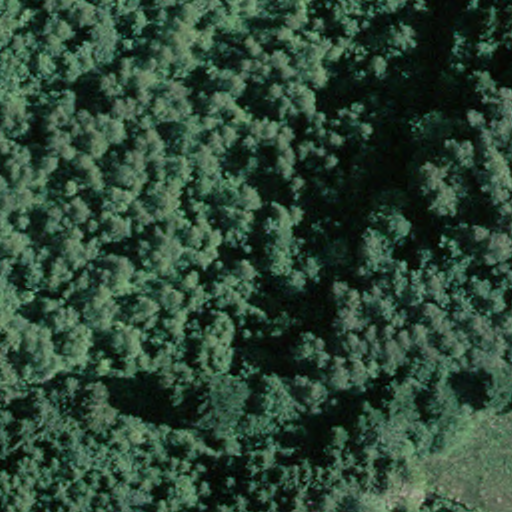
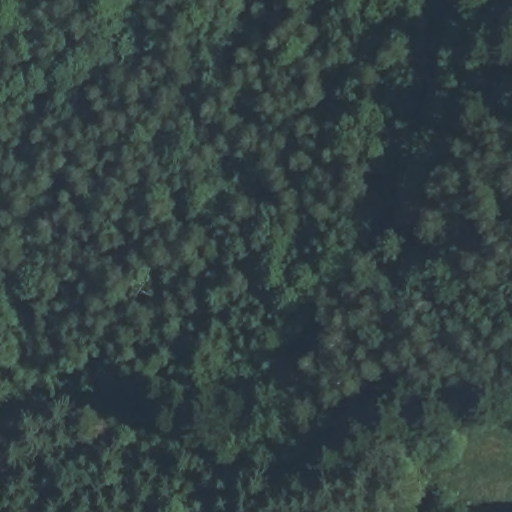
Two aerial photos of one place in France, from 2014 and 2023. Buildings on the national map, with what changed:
[]

